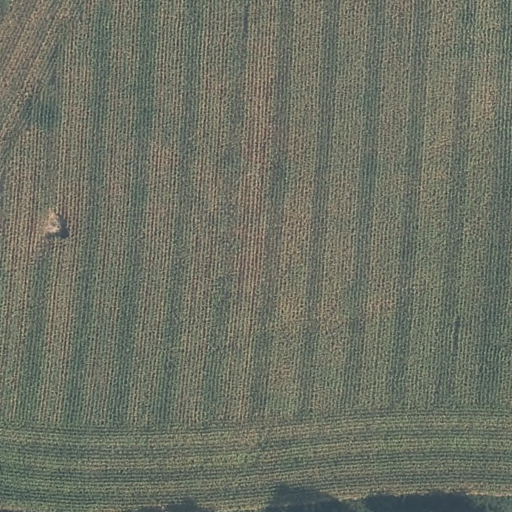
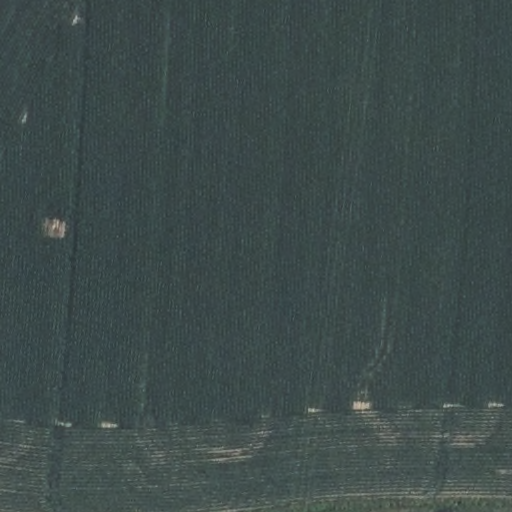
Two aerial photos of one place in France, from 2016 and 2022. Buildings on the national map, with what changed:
[]

